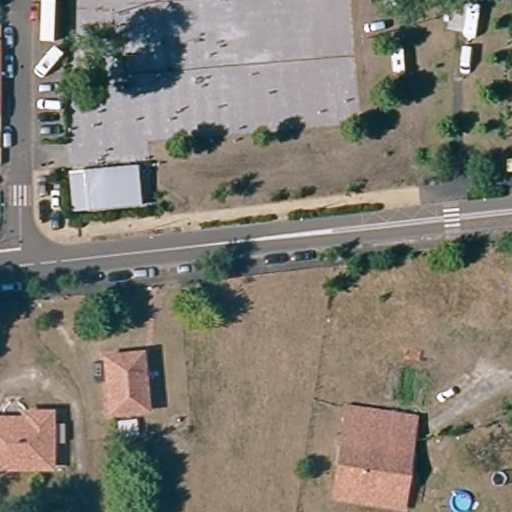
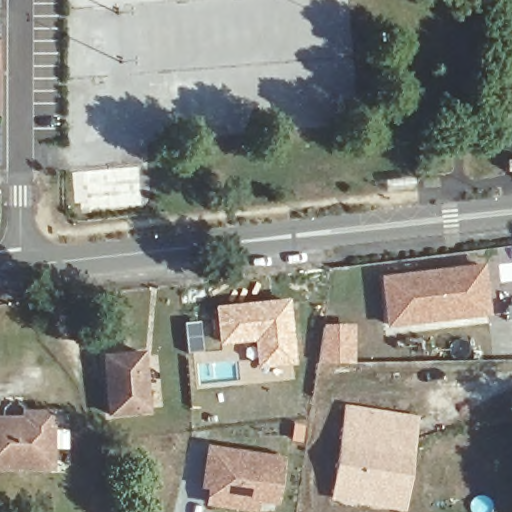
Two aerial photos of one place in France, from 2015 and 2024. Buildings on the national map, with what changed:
demolished [(404,176),(299,187),(296,157),(400,145),(404,176)]
unchanged [(510,167),(510,157),(512,157),(512,167),(510,167)]
unchanged [(75,200),(72,169),(141,162),(145,201),(90,206),(76,207),(75,200)]
new [(492,315),(388,326),(382,276),(485,262),(492,315)]
new [(290,297),(297,365),(256,369),(253,343),(218,347),(213,305),(290,297)]
new [(201,320),(205,351),(186,353),(182,322),(201,320)]
new [(326,328),(357,333),(352,362),(321,362),(326,328)]
unchanged [(151,407),(114,410),(108,354),(145,350),(151,407)]
unchanged [(406,506),(337,494),(348,405),(387,411),(418,415),(416,432),(413,449),(408,487),(406,506)]
unchanged [(0,464),(0,416),(26,416),(26,410),(54,410),(54,463),(0,464)]
new [(206,442),(286,455),(279,505),(260,502),(258,512),(254,512),(198,504),(206,442)]

